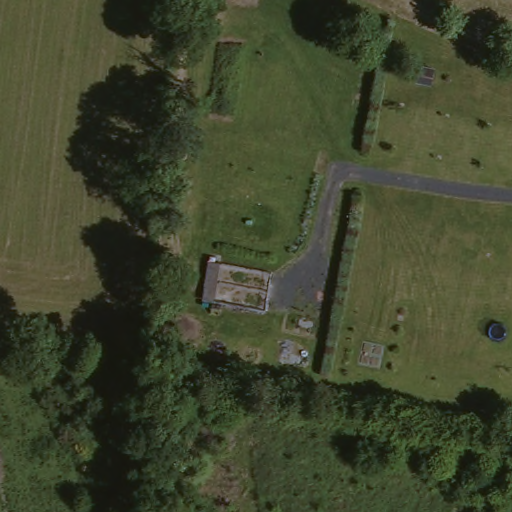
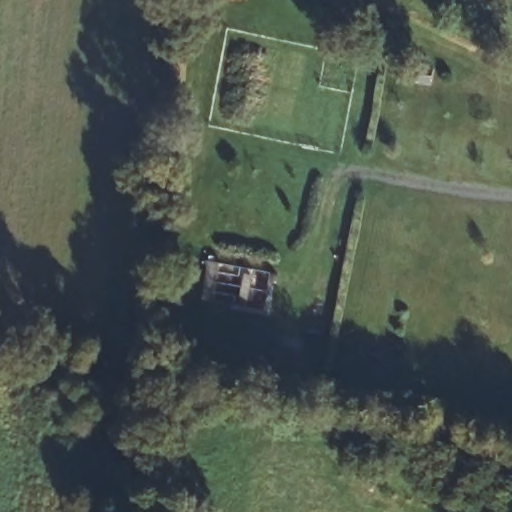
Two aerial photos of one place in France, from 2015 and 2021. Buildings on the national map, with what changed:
[]

